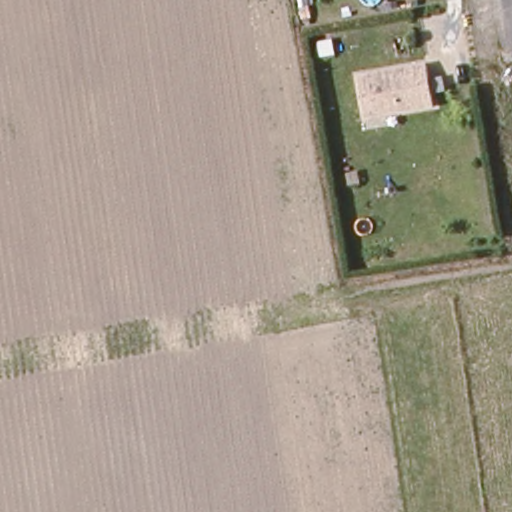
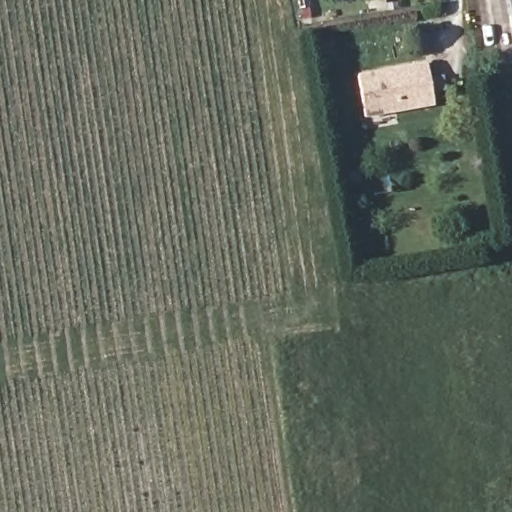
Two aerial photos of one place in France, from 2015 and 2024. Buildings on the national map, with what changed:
unchanged [(431,62),(438,102),(369,113),(362,73),(431,62)]

